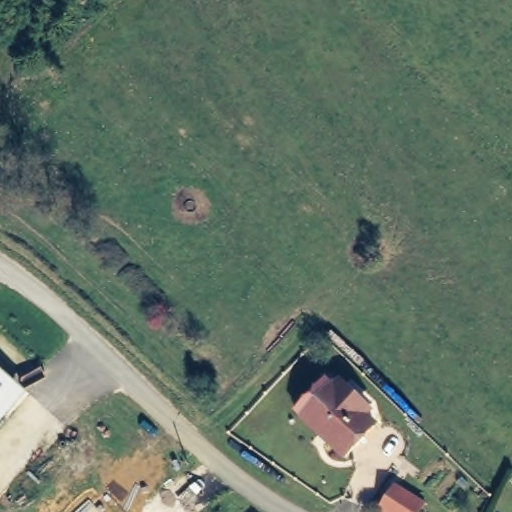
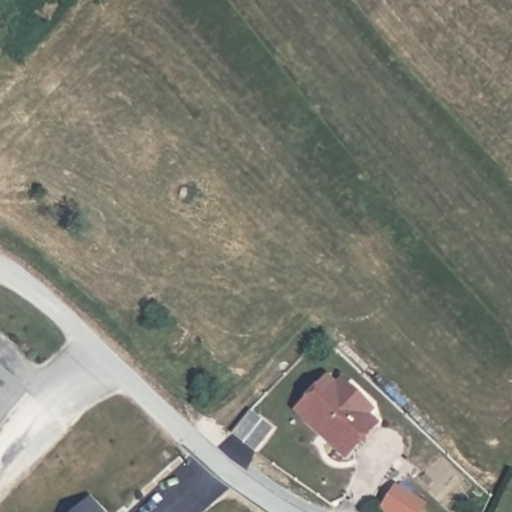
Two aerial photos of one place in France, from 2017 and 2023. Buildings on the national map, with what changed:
unchanged [(0,422),(0,368),(27,390),(0,422)]
unchanged [(298,417),(328,386),(331,389),(336,383),(364,410),(359,415),(370,426),(340,457),(301,420),(298,417)]
unchanged [(422,505),(418,512),(387,512),(383,510),(397,489),(422,505)]
new [(89,497),(103,512),(72,512),(89,497)]

